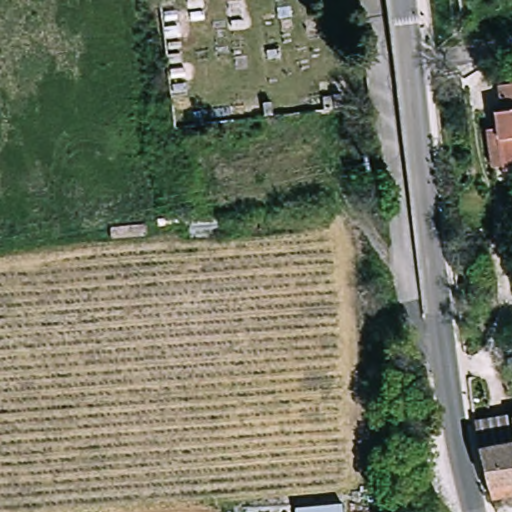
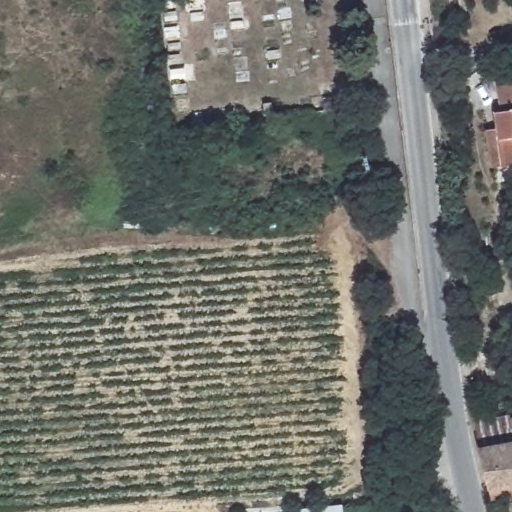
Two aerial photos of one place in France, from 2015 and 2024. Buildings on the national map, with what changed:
unchanged [(507,87),(512,87),(512,162),(505,162),(500,114),(509,112),(507,87)]
unchanged [(512,441),(484,446),(479,422),(512,417),(512,441)]
unchanged [(492,485),(485,453),(484,446),(512,441),(512,494),(495,497),(492,485)]

